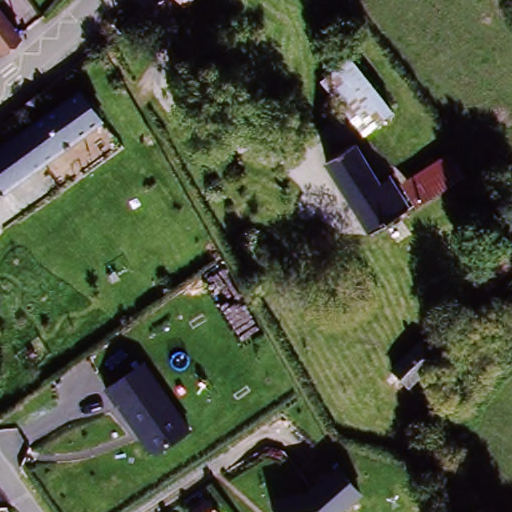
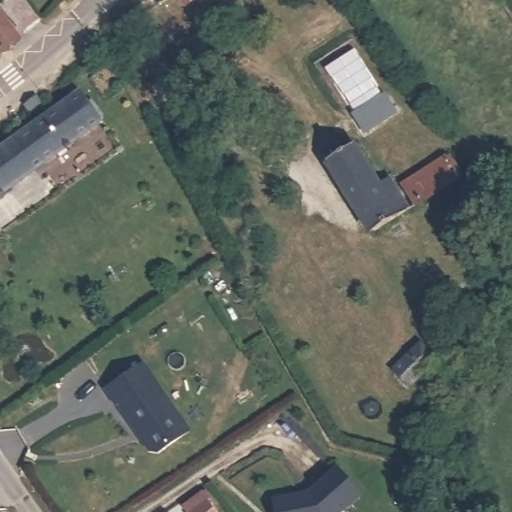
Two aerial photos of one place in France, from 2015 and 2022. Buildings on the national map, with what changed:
unchanged [(170,0),(197,0),(182,13),(170,0)]
unchanged [(15,60),(0,69),(0,11),(21,40),(15,60)]
unchanged [(345,34),(365,61),(358,66),(387,104),(351,131),(302,65),(345,34)]
unchanged [(112,115),(0,192),(0,153),(93,89),(112,115)]
unchanged [(388,197),(397,192),(417,222),(375,249),(327,175),(359,154),(388,197)]
unchanged [(468,190),(436,212),(418,187),(450,166),(468,190)]
unchanged [(442,355),(410,392),(392,376),(425,343),(442,355)]
unchanged [(145,362),(191,431),(157,455),(146,453),(102,393),(145,362)]
unchanged [(308,490),(338,466),(364,497),(345,512),(274,512),(271,498),(308,490)]

